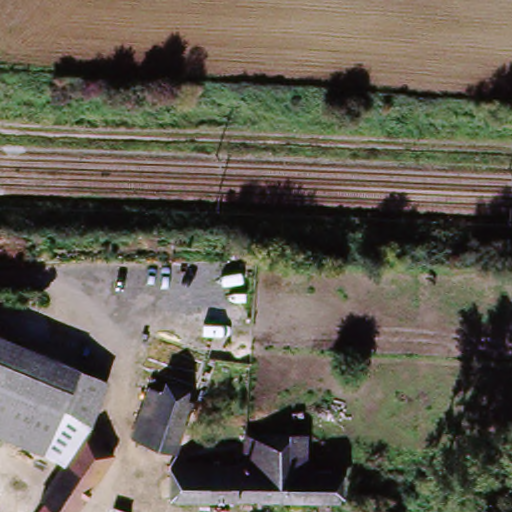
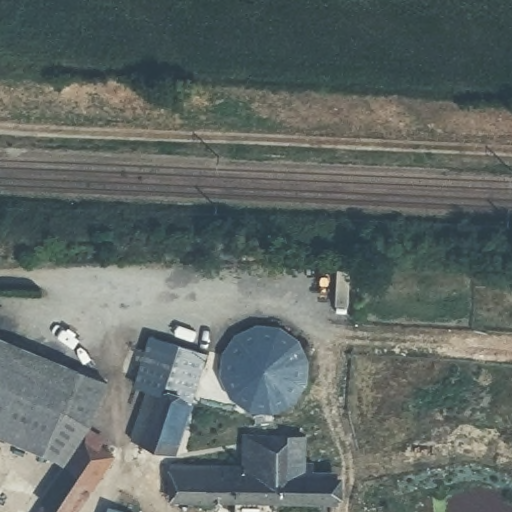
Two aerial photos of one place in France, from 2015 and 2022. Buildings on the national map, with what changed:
new [(157,338),(204,354),(189,399),(143,384),(157,338)]
unchanged [(42,452),(0,435),(0,339),(76,370),(60,407),(42,452)]
unchanged [(60,407),(76,370),(104,382),(88,424),(60,407)]
unchanged [(174,453),(137,441),(153,391),(191,404),(174,453)]
unchanged [(252,433),(309,436),(308,457),(319,457),(319,469),(334,470),(332,503),(175,497),(176,464),(251,466),(252,433)]
unchanged [(46,502),(87,439),(115,458),(79,512),(49,512),(53,506),(46,502)]
new [(106,512),(109,504),(131,512),(106,512)]

